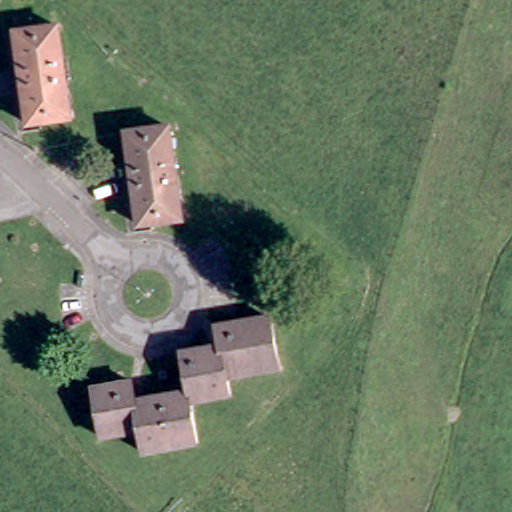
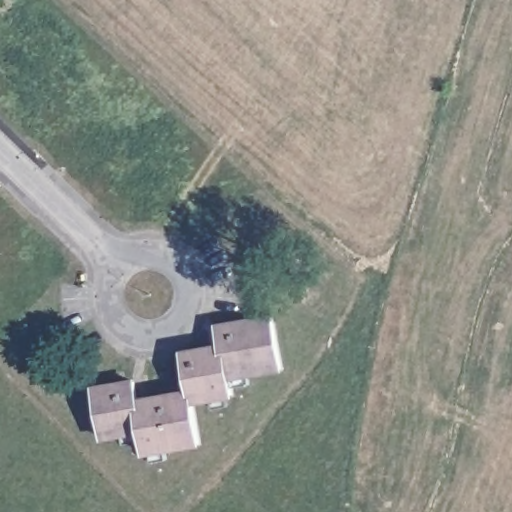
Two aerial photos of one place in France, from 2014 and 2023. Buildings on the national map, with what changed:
demolished [(64,31),(76,124),(35,129),(29,89),(26,89),(25,77),(28,77),(23,37),(64,31)]
demolished [(183,219),(143,225),(137,186),(134,186),(132,172),(135,172),(130,132),(171,127),(183,219)]
unchanged [(228,352),(223,333),(276,322),(285,373),(239,383),(243,400),(203,409),(211,448),(158,461),(151,438),(113,447),(102,398),(141,391),(146,408),(198,397),(190,360),(228,352)]

